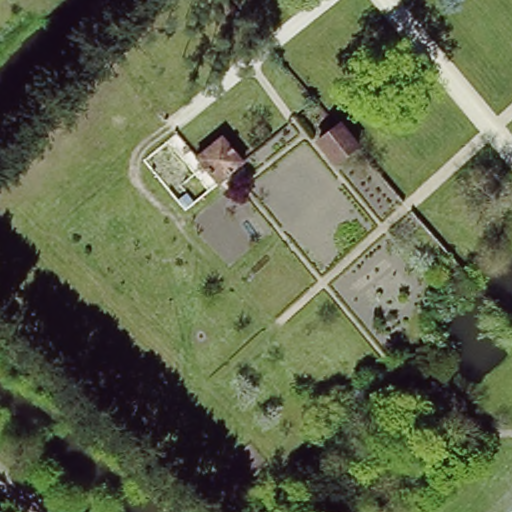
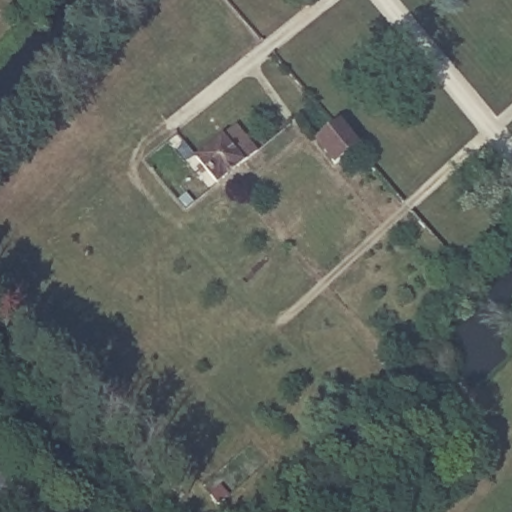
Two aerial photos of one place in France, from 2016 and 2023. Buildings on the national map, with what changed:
unchanged [(340,130),(344,127),(361,148),(356,151),(340,164),(323,143),(340,130)]
unchanged [(225,144),(243,166),(216,187),(199,165),(225,144)]

